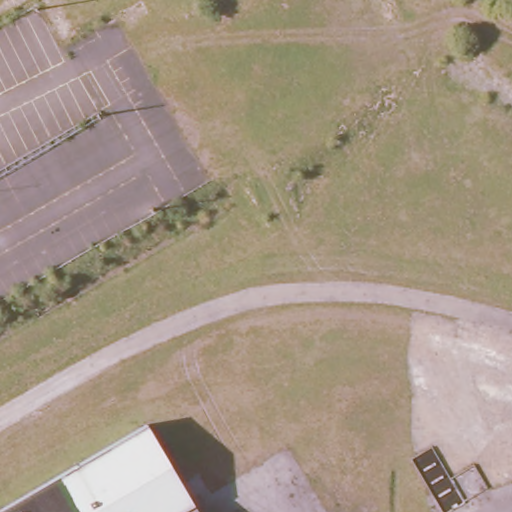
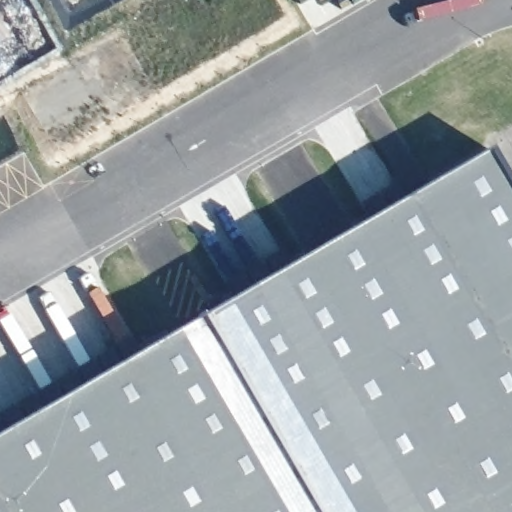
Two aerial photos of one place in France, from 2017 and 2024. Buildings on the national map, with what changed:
new [(512,512),(0,512),(0,433),(487,150),(512,193),(512,512)]
demolished [(162,512),(0,512),(0,500),(144,416),(191,495),(162,512)]
demolished [(201,512),(162,512),(191,495),(201,512)]

